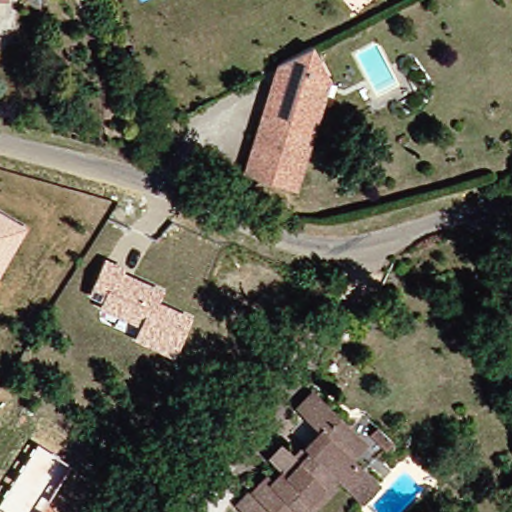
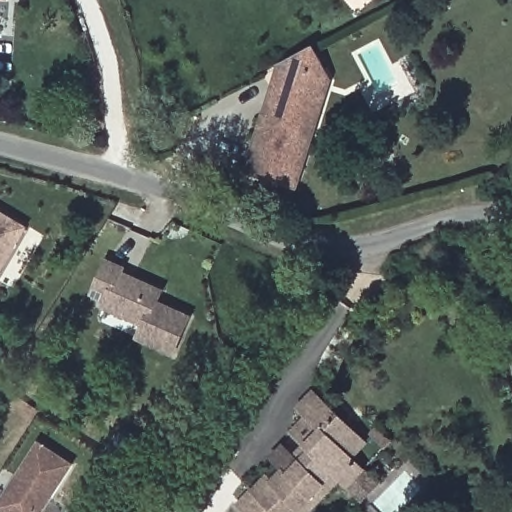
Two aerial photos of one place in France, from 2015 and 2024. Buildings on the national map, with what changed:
unchanged [(291,201),(239,185),(262,107),(274,111),(280,93),(271,77),(305,59),(315,76),(324,93),(318,114),(304,160),(291,201)]
unchanged [(0,274),(0,212),(26,227),(0,274)]
unchanged [(127,266),(124,272),(164,290),(160,302),(194,316),(174,358),(134,339),(139,326),(101,309),(104,305),(88,296),(105,258),(127,266)]
unchanged [(240,492),(257,473),(263,478),(273,467),(262,457),(273,445),(284,455),(310,427),(289,408),(303,392),(339,425),(359,441),(344,457),(354,464),(361,471),(341,492),(334,486),(310,512),(263,512),(240,492)]
new [(46,512),(0,512),(0,504),(39,443),(76,467),(46,512)]

